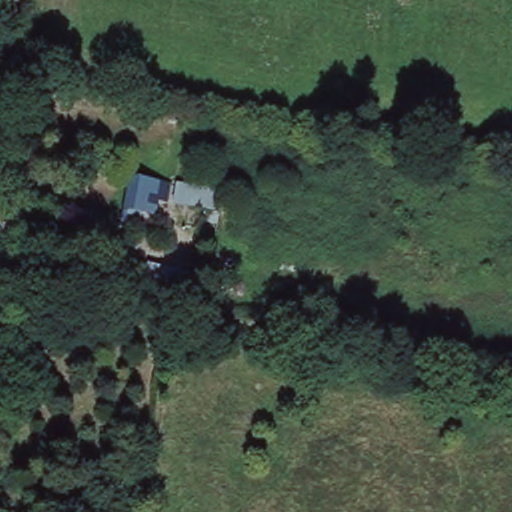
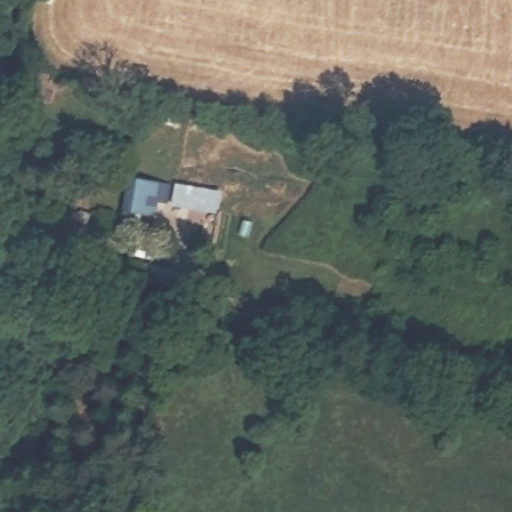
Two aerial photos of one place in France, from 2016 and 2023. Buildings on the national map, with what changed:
unchanged [(214,190),(212,213),(156,204),(155,221),(144,219),(142,230),(119,226),(122,210),(130,176),(150,180),(154,180),(214,190)]
unchanged [(120,470),(115,504),(104,502),(108,468),(120,470)]

